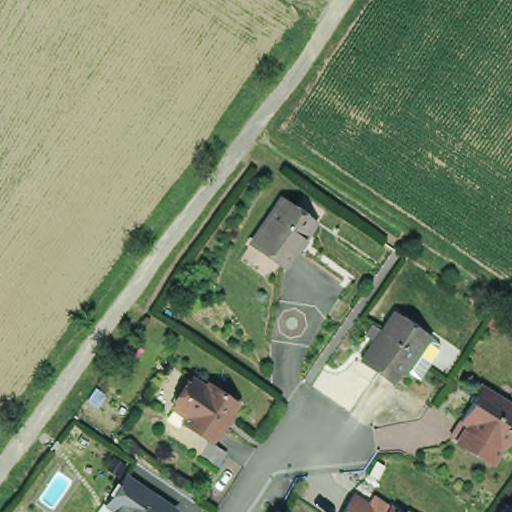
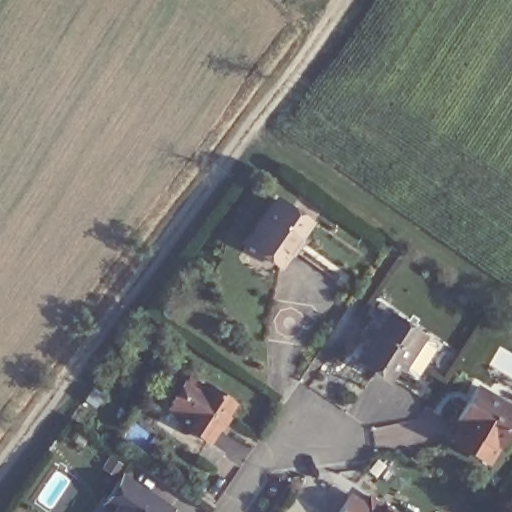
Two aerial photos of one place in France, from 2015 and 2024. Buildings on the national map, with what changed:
unchanged [(310,218),(280,260),(250,238),(280,196),(310,218)]
unchanged [(396,370),(389,365),(381,376),(355,358),(384,315),(417,339),(396,370)]
unchanged [(186,413),(171,403),(190,375),(204,384),(207,380),(235,399),(209,437),(182,418),(186,413)]
unchanged [(512,394),(512,425),(495,452),(455,428),(485,378),(512,394)]
unchanged [(225,448),(216,462),(200,451),(209,437),(225,448)]
unchanged [(173,512),(119,512),(120,511),(109,504),(112,498),(126,478),(174,511),(173,512)]
unchanged [(362,512),(340,512),(347,502),(362,512)]
unchanged [(378,512),(373,512),(375,509),(378,512)]

